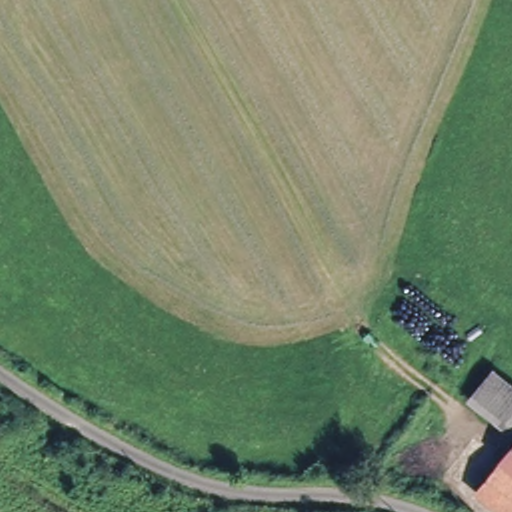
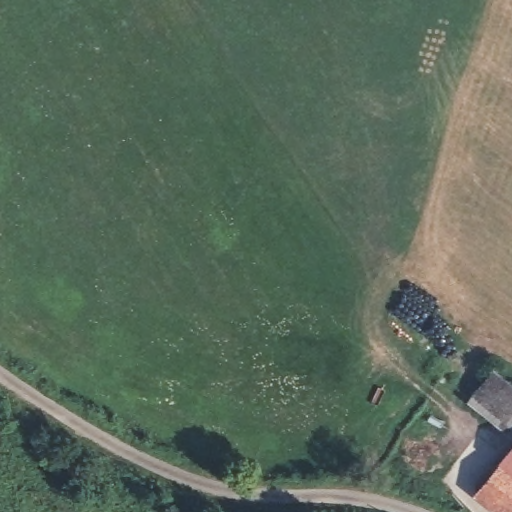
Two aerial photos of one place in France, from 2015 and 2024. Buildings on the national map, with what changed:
unchanged [(466,404),(478,390),(479,388),(490,375),(512,392),(512,441),(466,404)]
unchanged [(475,497),(512,452),(512,512),(494,512),(475,497)]

